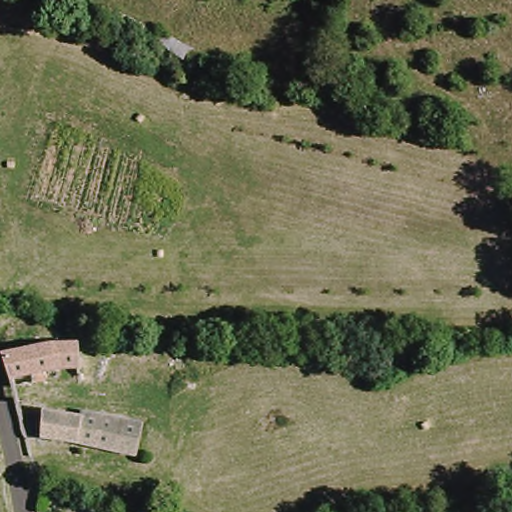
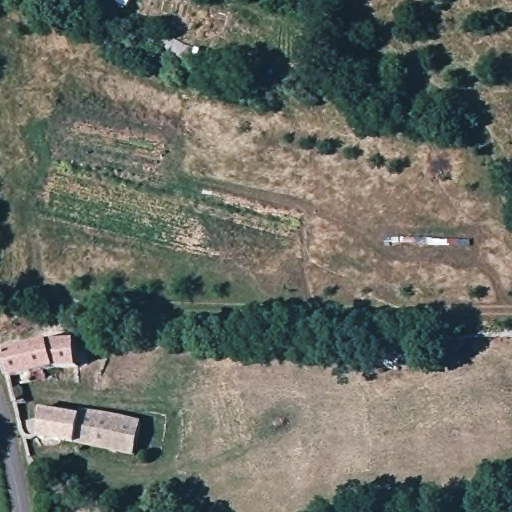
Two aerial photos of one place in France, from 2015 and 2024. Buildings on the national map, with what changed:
unchanged [(25,382),(23,373),(13,346),(65,337),(70,362),(72,371),(25,382)]
unchanged [(47,411),(86,417),(81,447),(45,440),(47,411)]
unchanged [(86,417),(88,413),(125,416),(149,422),(139,458),(92,450),(81,447),(86,417)]

